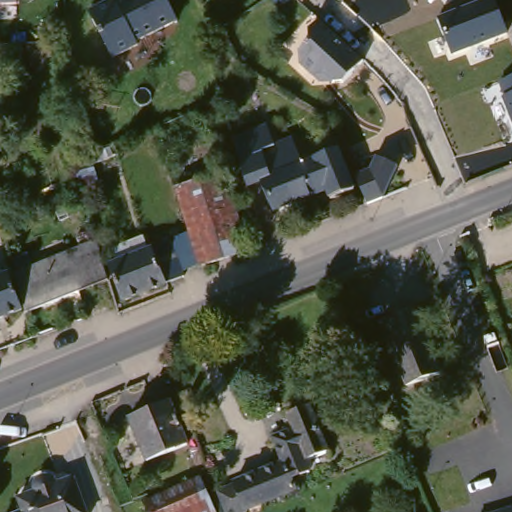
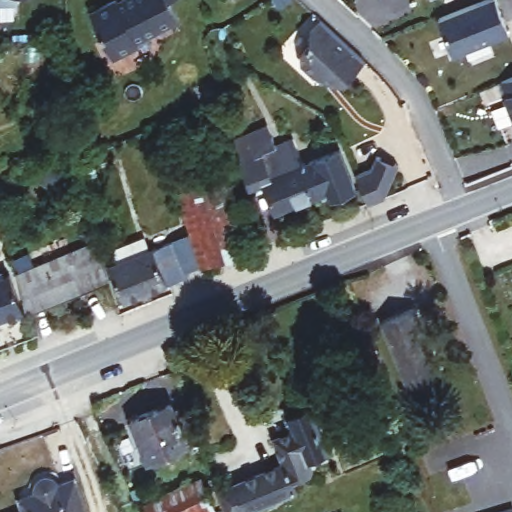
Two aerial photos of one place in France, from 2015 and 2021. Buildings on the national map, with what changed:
unchanged [(23,0),(50,0),(50,7),(36,8),(23,8),(23,0)]
unchanged [(179,15),(137,36),(139,40),(114,53),(91,8),(108,0),(172,0),(179,15)]
unchanged [(284,6),(280,0),(293,0),(284,6)]
unchanged [(453,57),(437,19),(483,0),(495,0),(508,35),(453,57)]
unchanged [(37,15),(38,32),(19,32),(18,15),(37,15)]
unchanged [(318,75),(302,59),(302,50),(312,39),(311,30),(323,19),(368,60),(346,82),(336,82),(327,82),(318,75)]
unchanged [(512,78),(512,117),(498,83),(512,78)]
unchanged [(269,124),(278,145),(295,139),(306,163),(341,148),(358,188),(334,199),(330,190),(277,210),(264,180),(250,186),(235,137),(269,124)]
unchanged [(96,151),(100,163),(78,172),(75,160),(96,151)]
unchanged [(402,164),(388,196),(372,202),(358,173),(359,173),(374,166),(379,154),(402,164)]
unchanged [(197,264),(175,186),(190,181),(223,173),(246,250),(197,264)]
unchanged [(168,241),(186,234),(194,263),(180,269),(182,275),(122,300),(107,264),(114,261),(109,248),(141,235),(146,249),(168,240),(168,241)]
unchanged [(94,240),(105,280),(75,292),(60,254),(94,240)]
unchanged [(60,254),(75,292),(26,311),(15,271),(60,254)]
unchanged [(6,272),(19,309),(0,316),(0,274),(6,272)]
unchanged [(417,306),(443,374),(411,386),(384,318),(417,306)]
unchanged [(375,343),(387,373),(373,378),(361,348),(375,343)]
unchanged [(174,401),(190,443),(150,460),(133,417),(174,401)]
unchanged [(237,485),(236,482),(285,462),(275,438),(296,430),(289,414),(298,410),(312,405),(331,452),(312,460),(314,467),(311,473),(295,480),(299,489),(247,510),(241,512),(229,512),(221,491),(237,485)]
unchanged [(428,510),(421,512),(419,512),(405,473),(414,470),(428,510)]
unchanged [(201,475),(216,512),(152,512),(147,500),(201,475)]
unchanged [(19,496),(36,490),(38,485),(39,483),(41,480),(44,478),(50,476),(52,477),(56,478),(60,481),(78,476),(90,512),(20,512),(24,510),(19,496)]
unchanged [(512,512),(484,512),(512,504),(512,512)]

